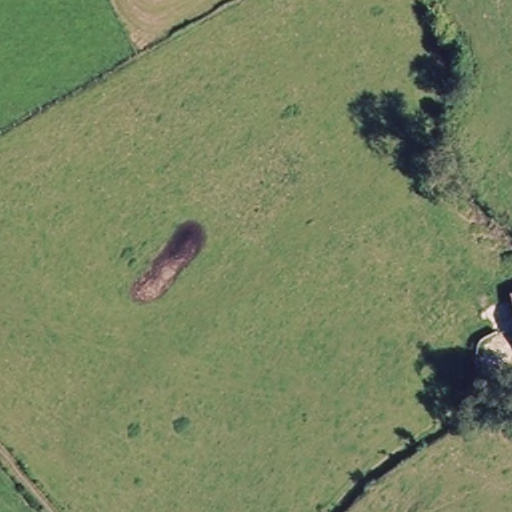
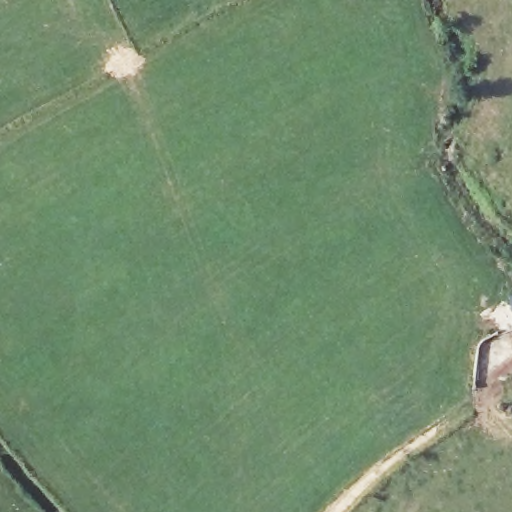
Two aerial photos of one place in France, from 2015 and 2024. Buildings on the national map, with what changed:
unchanged [(507,294),(512,292),(512,307),(507,294)]

